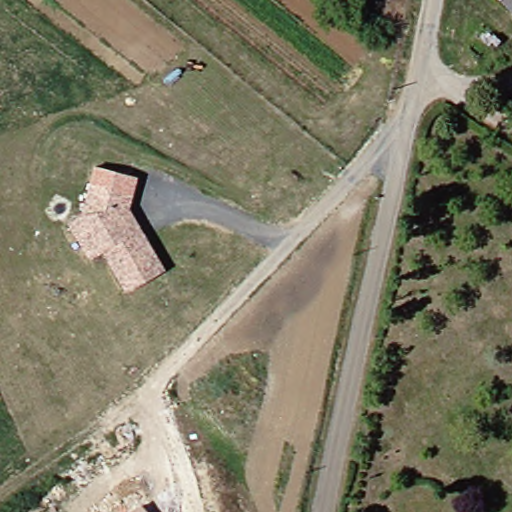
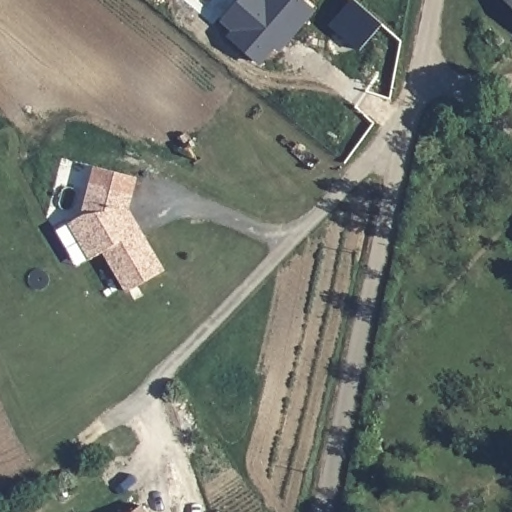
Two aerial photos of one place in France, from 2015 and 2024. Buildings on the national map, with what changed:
new [(277,49),(261,66),(227,37),(232,32),(221,23),(241,0),(304,0),(317,12),(282,53),(277,49)]
new [(328,26),(352,0),(355,0),(384,25),(359,51),(328,26)]
unchanged [(104,165),(143,178),(137,193),(132,210),(162,273),(126,291),(106,249),(92,256),(74,217),(87,211),(99,180),(104,165)]
unchanged [(147,512),(134,512),(142,506),(147,512)]

